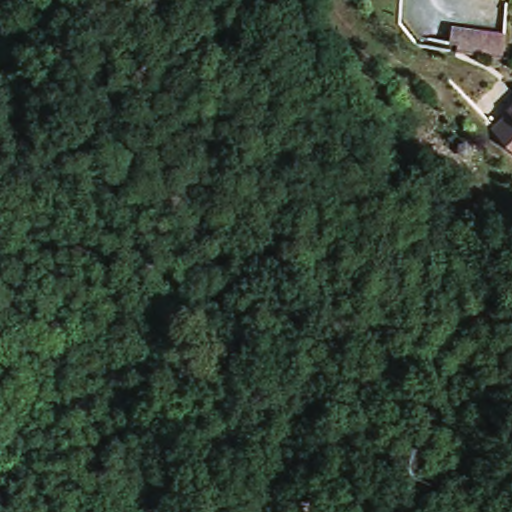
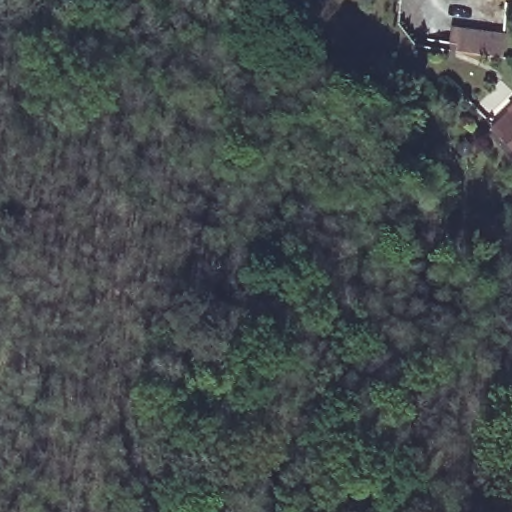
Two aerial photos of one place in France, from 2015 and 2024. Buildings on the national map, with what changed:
unchanged [(498,54),(443,47),(445,37),(435,35),(437,18),(447,20),(498,28),(498,54)]

